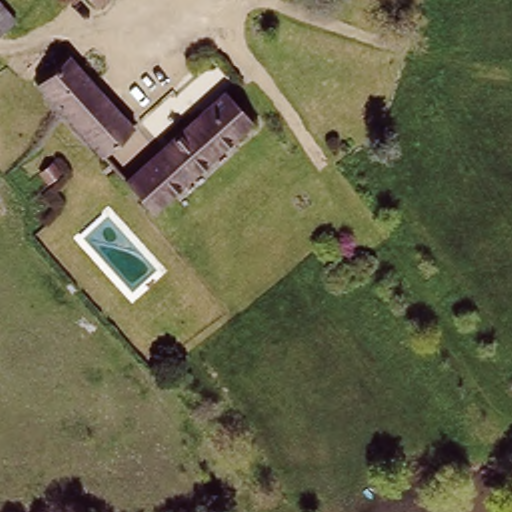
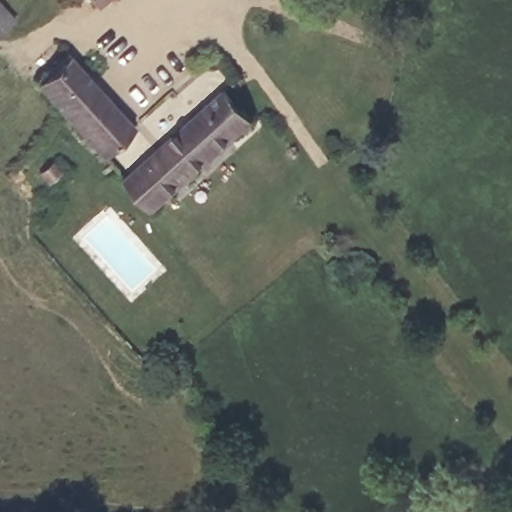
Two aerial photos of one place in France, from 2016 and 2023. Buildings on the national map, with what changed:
unchanged [(0,29),(0,10),(9,20),(0,29)]
unchanged [(38,78),(60,59),(65,55),(133,129),(104,154),(38,78)]
unchanged [(251,116),(143,213),(119,184),(223,91),(224,91),(251,116)]

